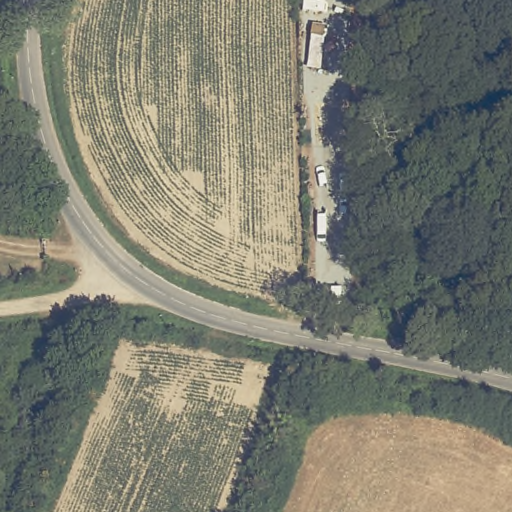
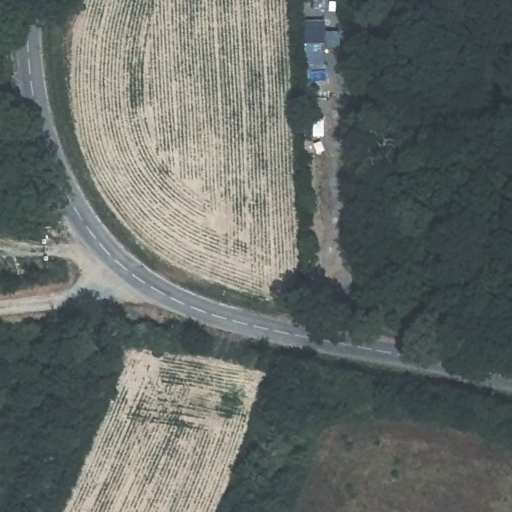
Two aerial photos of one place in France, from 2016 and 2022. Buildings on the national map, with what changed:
unchanged [(303,63),(305,42),(323,43),(320,64),(303,63)]

